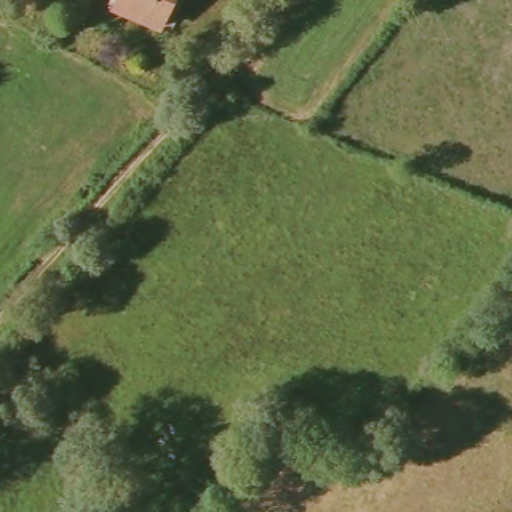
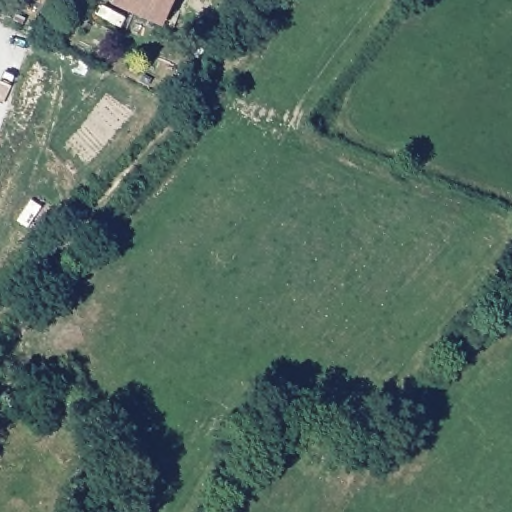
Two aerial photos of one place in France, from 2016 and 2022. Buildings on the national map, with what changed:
unchanged [(117,3),(119,0),(171,0),(162,22),(117,3)]

